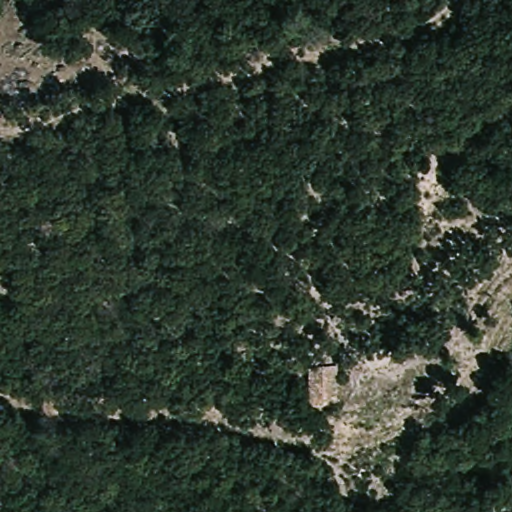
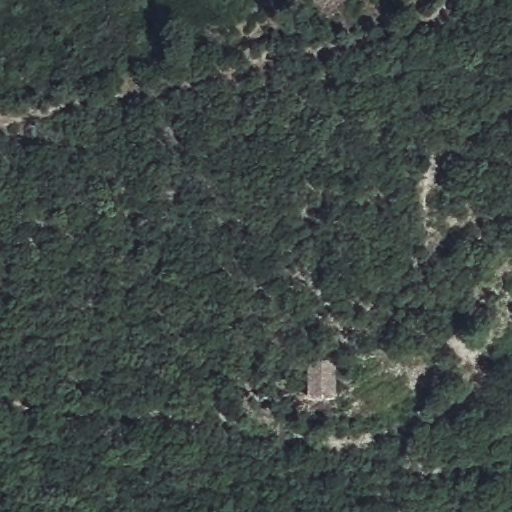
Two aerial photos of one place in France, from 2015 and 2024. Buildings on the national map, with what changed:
unchanged [(336,365),(336,397),(309,397),(311,363),(336,365)]

